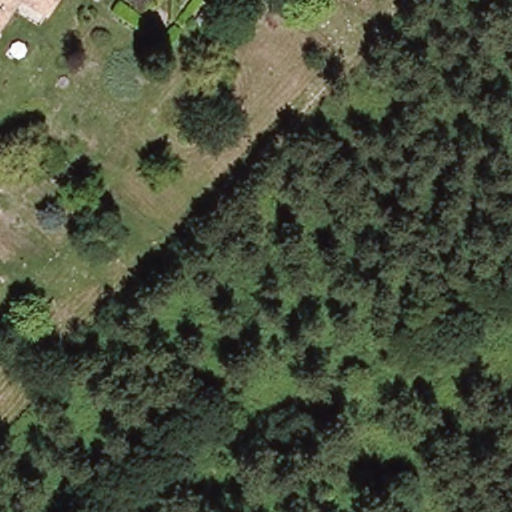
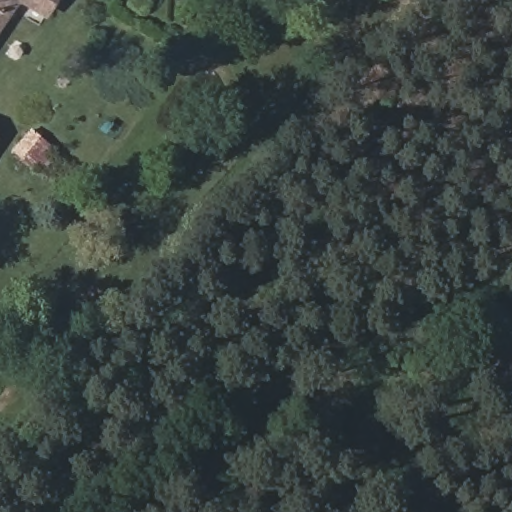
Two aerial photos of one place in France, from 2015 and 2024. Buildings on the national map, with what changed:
unchanged [(17,0),(0,28),(0,0),(17,0)]
unchanged [(28,0),(66,0),(56,17),(28,0)]
unchanged [(10,167),(0,161),(0,149),(0,148),(16,158),(10,167)]

